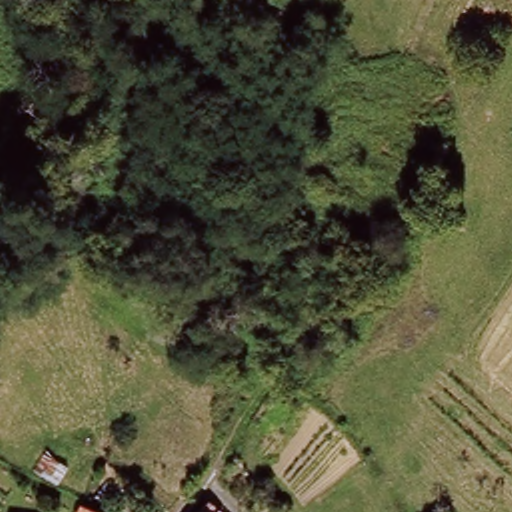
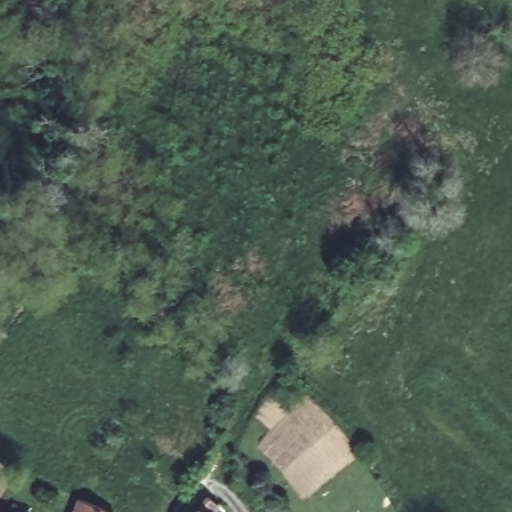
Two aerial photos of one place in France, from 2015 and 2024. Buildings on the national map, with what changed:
unchanged [(231,505),(224,512),(203,512),(220,492),(231,505)]
unchanged [(118,512),(76,512),(84,495),(118,512)]

